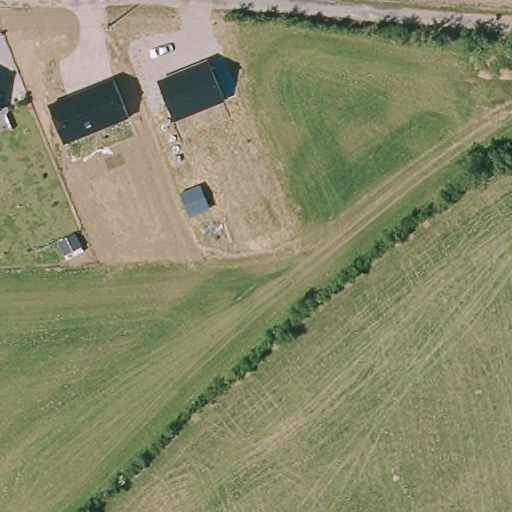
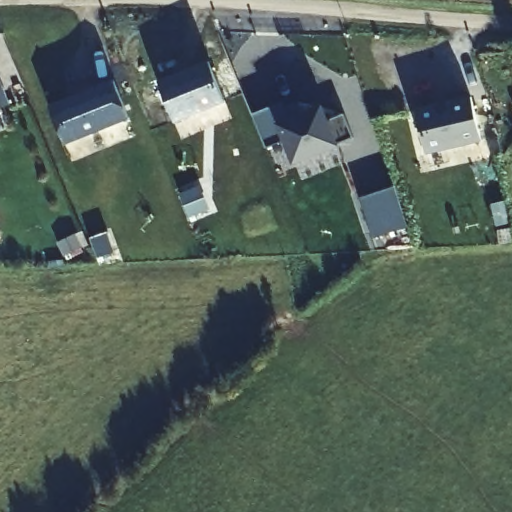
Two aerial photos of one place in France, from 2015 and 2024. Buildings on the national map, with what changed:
unchanged [(208,60),(225,101),(173,121),(157,80),(208,60)]
unchanged [(113,81),(129,118),(64,144),(48,104),(113,81)]
new [(426,152),(416,108),(471,95),(482,139),(426,152)]
new [(337,145),(292,163),(284,141),(266,147),(253,114),(283,103),(289,115),(323,102),(330,119),(344,113),(354,136),(337,145)]
unchanged [(1,109),(0,110),(0,106),(1,109)]
new [(409,233),(375,245),(361,201),(394,191),(409,233)]
unchanged [(66,260),(58,243),(75,234),(84,251),(66,260)]

